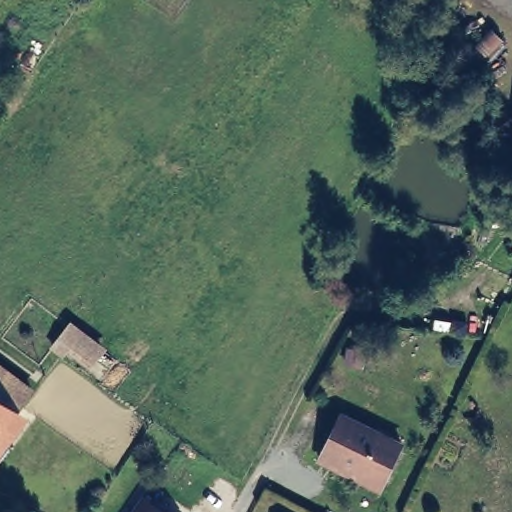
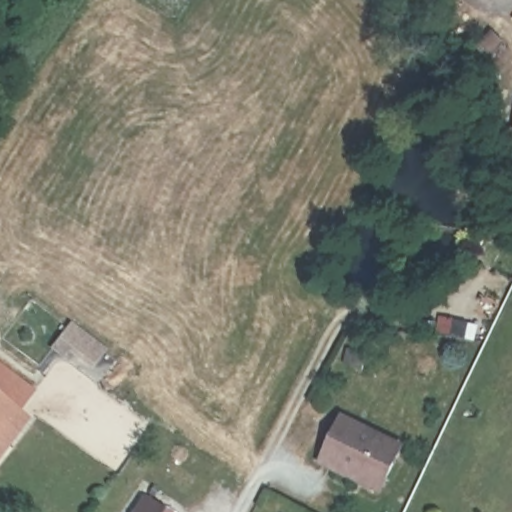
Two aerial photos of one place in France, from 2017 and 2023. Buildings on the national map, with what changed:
unchanged [(510,129),(512,123),(512,130),(510,129)]
unchanged [(112,346),(97,374),(70,355),(67,360),(52,348),(75,318),(112,346)]
unchanged [(0,352),(47,380),(0,451),(0,352)]
unchanged [(350,473),(320,457),(341,412),(402,445),(385,479),(381,487),(350,473)]
unchanged [(134,512),(145,493),(171,512),(134,512)]

